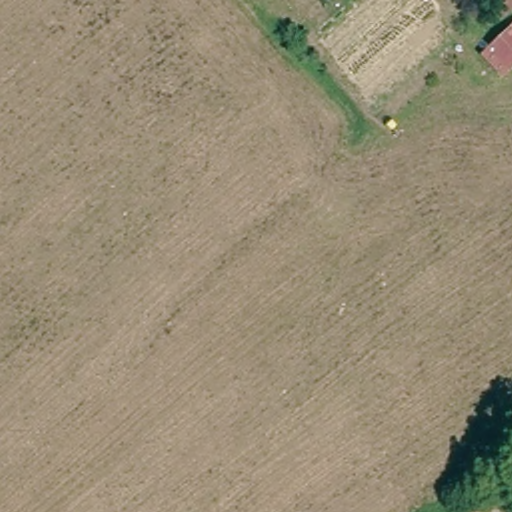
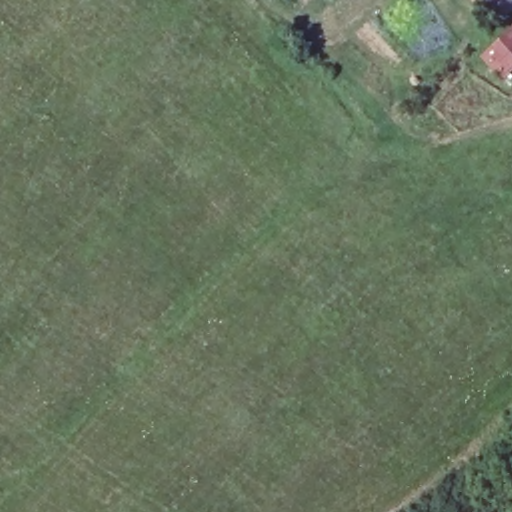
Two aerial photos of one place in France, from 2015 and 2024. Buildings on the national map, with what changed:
unchanged [(490,0),(512,0),(512,17),(511,18),(490,0)]
unchanged [(487,57),(512,33),(512,68),(505,75),(487,57)]

